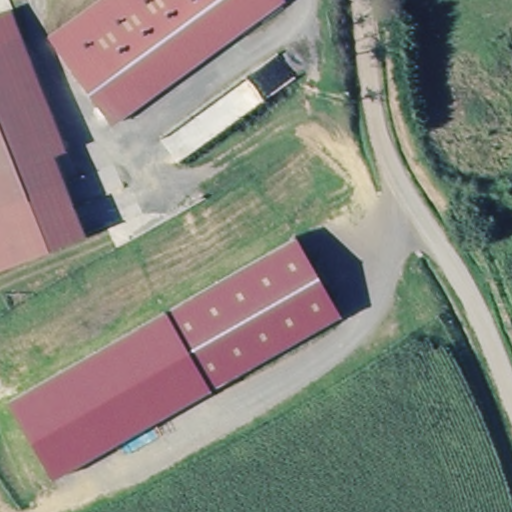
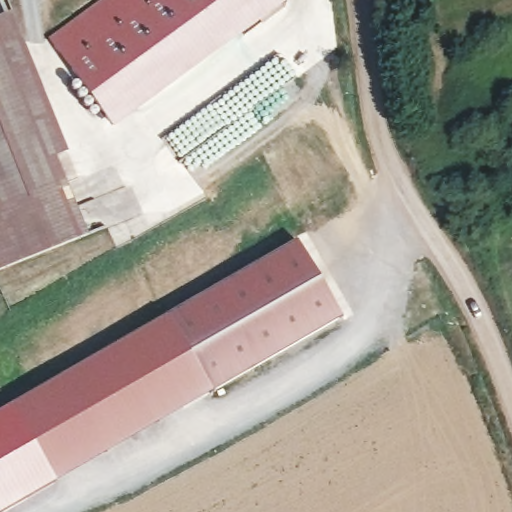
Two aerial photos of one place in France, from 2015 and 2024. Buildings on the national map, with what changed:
unchanged [(47,37),(104,0),(276,0),(281,9),(106,126),(47,37)]
unchanged [(0,50),(0,29),(6,48),(0,50)]
unchanged [(27,41),(63,160),(41,166),(6,48),(27,41)]
unchanged [(41,166),(51,193),(0,210),(0,50),(6,48),(41,166)]
unchanged [(71,250),(0,275),(0,210),(51,193),(71,250)]
unchanged [(299,248),(340,328),(205,397),(164,316),(299,248)]
unchanged [(205,397),(44,479),(3,399),(164,316),(205,397)]
new [(5,512),(0,512),(0,401),(3,399),(44,479),(205,397),(5,512)]

